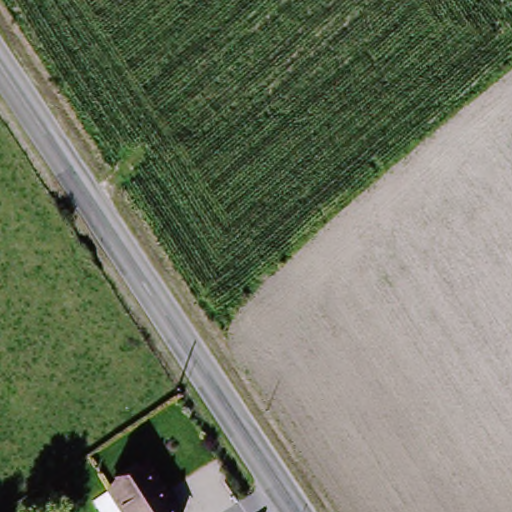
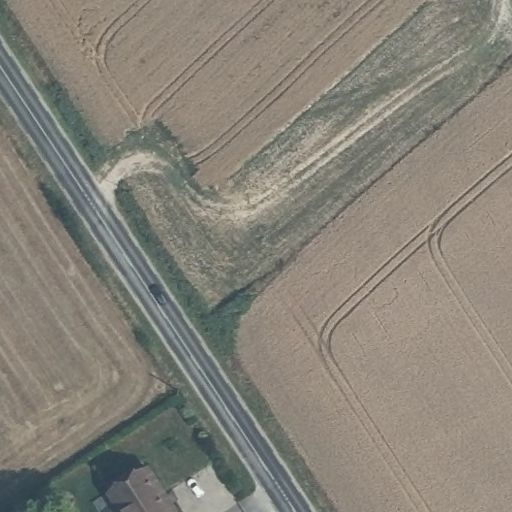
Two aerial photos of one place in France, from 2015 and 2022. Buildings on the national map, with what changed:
unchanged [(168,512),(120,512),(102,490),(140,467),(168,512)]

